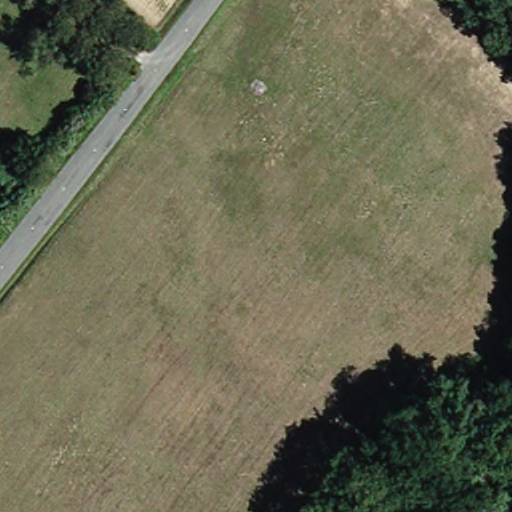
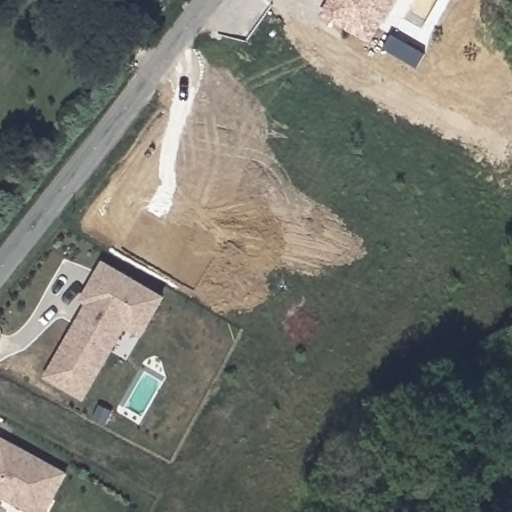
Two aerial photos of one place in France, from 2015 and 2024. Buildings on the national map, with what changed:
new [(328,0),(396,0),(371,44),(320,14),(328,0)]
new [(86,304),(80,300),(101,262),(165,297),(142,337),(116,321),(73,399),(43,382),(86,304)]
new [(22,509),(0,498),(0,438),(69,474),(55,501),(48,512),(27,512),(22,509)]

